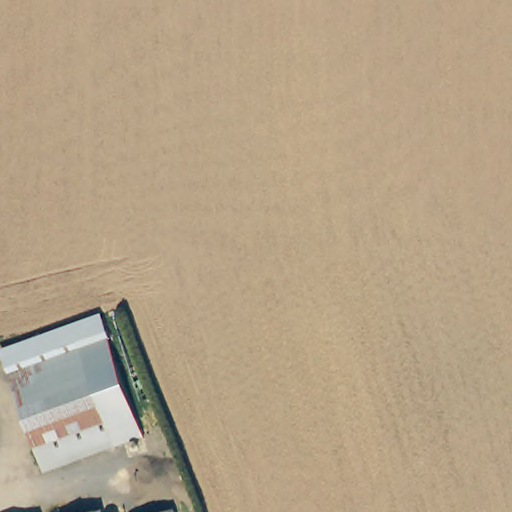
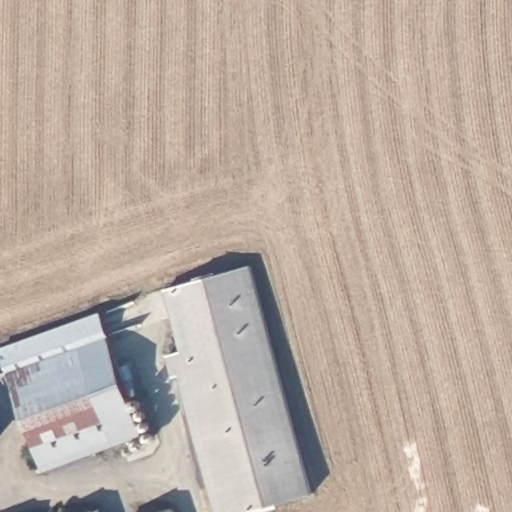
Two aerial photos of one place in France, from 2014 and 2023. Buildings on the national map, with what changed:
new [(179,377),(174,378),(168,356),(180,351),(164,289),(250,267),(314,494),(247,512),(218,512),(179,377)]
unchanged [(108,338),(79,349),(12,373),(5,354),(4,349),(100,317),(103,324),(108,338)]
unchanged [(40,464),(9,374),(12,373),(79,349),(89,374),(112,439),(40,464)]
unchanged [(89,374),(113,365),(139,439),(115,448),(112,439),(89,374)]
unchanged [(39,508),(41,512),(30,512),(39,508)]
unchanged [(100,512),(96,512),(100,511),(100,512)]

